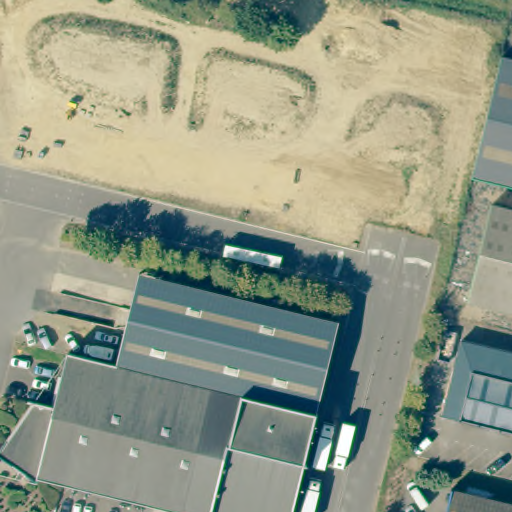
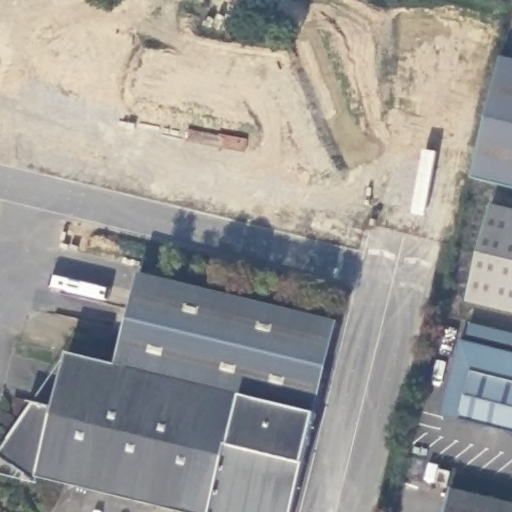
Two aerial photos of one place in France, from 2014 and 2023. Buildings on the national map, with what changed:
unchanged [(512,60),(512,189),(486,182),(473,180),(475,173),(475,171),(502,58),(512,60)]
unchanged [(512,209),(512,309),(468,298),(491,204),(512,209)]
unchanged [(140,275),(338,323),(316,414),(118,366),(140,275)]
unchanged [(471,374),(460,424),(441,418),(461,343),(512,355),(512,384),(471,374)]
unchanged [(211,512),(176,512),(38,478),(36,483),(0,457),(0,449),(32,403),(55,408),(67,354),(118,366),(316,414),(304,465),(227,446),(211,512)]
unchanged [(471,374),(512,384),(512,437),(460,424),(471,374)]
unchanged [(293,512),(211,512),(227,446),(304,465),(293,512)]
unchanged [(451,483),(512,497),(512,512),(445,512),(451,483)]

